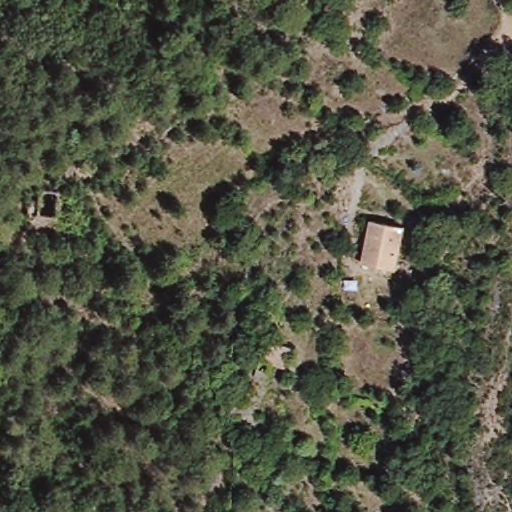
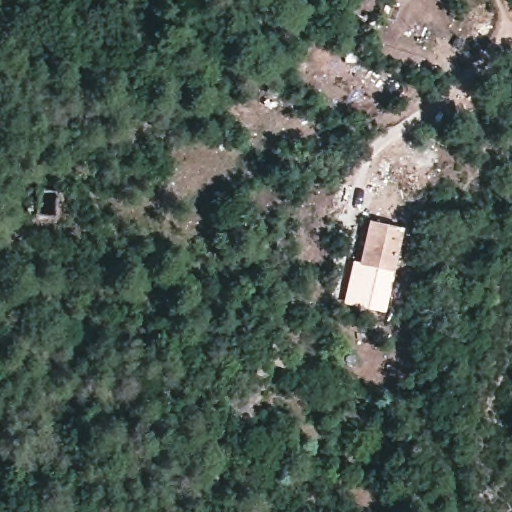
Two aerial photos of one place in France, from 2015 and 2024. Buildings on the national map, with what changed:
unchanged [(402,223),(393,271),(353,260),(363,218),(402,223)]
new [(386,312),(343,304),(353,260),(371,265),(393,271),(386,312)]
unchanged [(285,369),(257,361),(263,337),(290,344),(285,369)]

